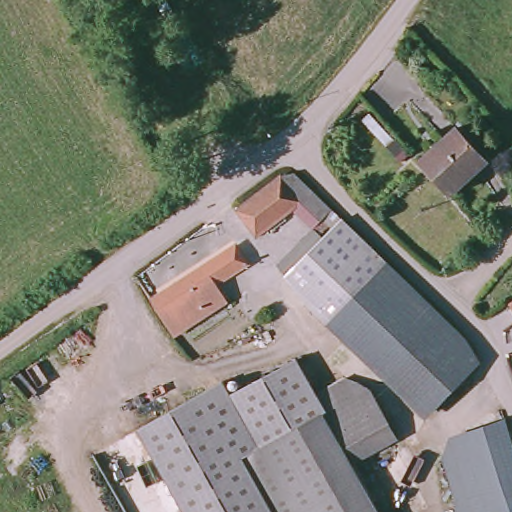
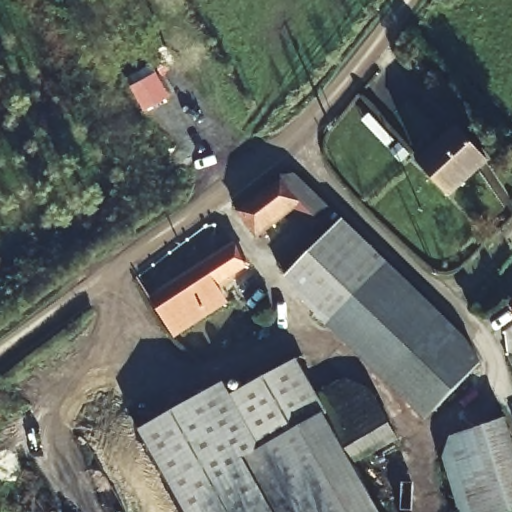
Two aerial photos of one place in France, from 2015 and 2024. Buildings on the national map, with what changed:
new [(168,94),(143,110),(128,86),(156,71),(168,94)]
unchanged [(449,129),(484,157),(452,195),(419,167),(449,129)]
unchanged [(285,172),(306,179),(335,209),(314,230),(292,209),(255,234),(234,208),(285,172)]
unchanged [(314,230),(335,209),(343,218),(372,247),(449,322),(466,339),(479,367),(419,422),(386,387),(311,307),(278,266),(314,230)]
unchanged [(206,265),(216,259),(239,242),(251,261),(228,278),(225,280),(216,286),(217,290),(222,303),(218,305),(169,333),(149,300),(196,271),(206,265)]
unchanged [(512,305),(509,300),(512,299),(512,305)]
unchanged [(236,382),(274,363),(284,359),(294,354),(315,388),(354,456),(344,461),(372,512),(276,512),(201,384),(217,376),(228,370),(236,382)]
unchanged [(340,376),(369,389),(392,436),(354,456),(315,388),(340,376)]
unchanged [(191,512),(141,415),(201,384),(276,512),(191,512)]
unchanged [(455,423),(498,412),(508,445),(512,458),(512,484),(507,501),(472,512),(452,512),(434,449),(455,423)]

